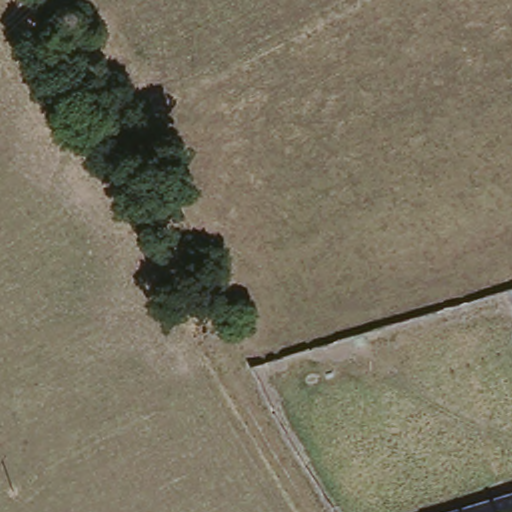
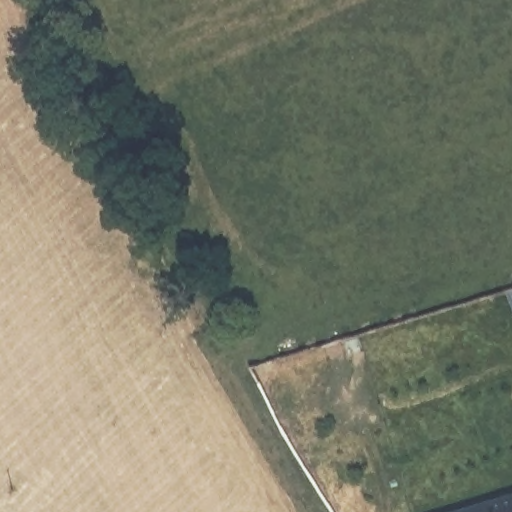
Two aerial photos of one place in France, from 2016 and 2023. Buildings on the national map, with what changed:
unchanged [(512,503),(512,512),(483,512),(512,503)]

